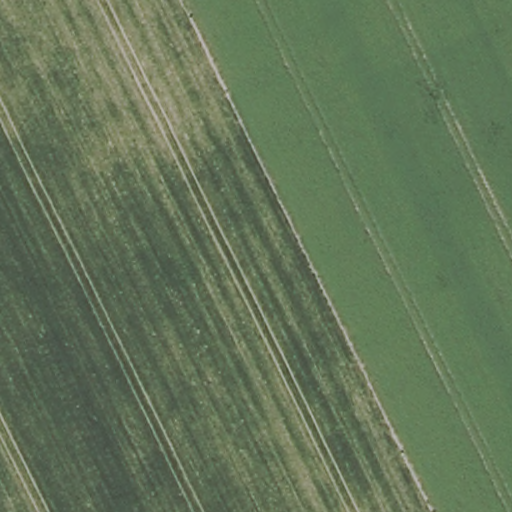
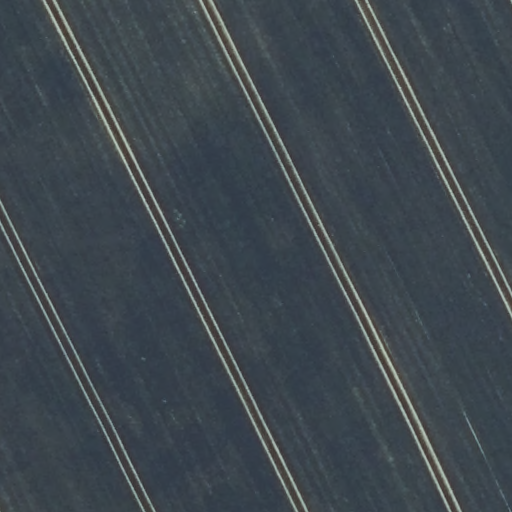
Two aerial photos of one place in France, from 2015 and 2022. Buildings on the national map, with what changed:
[]

